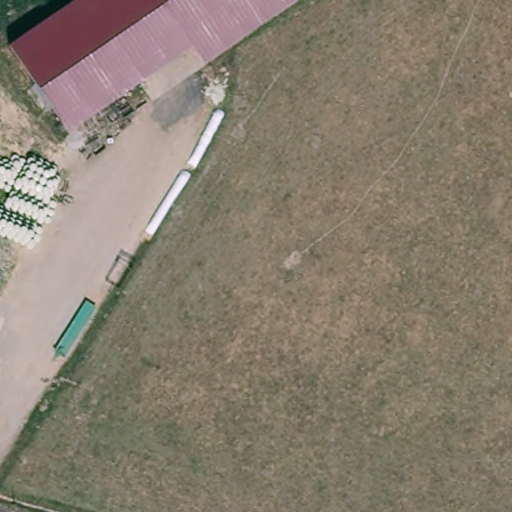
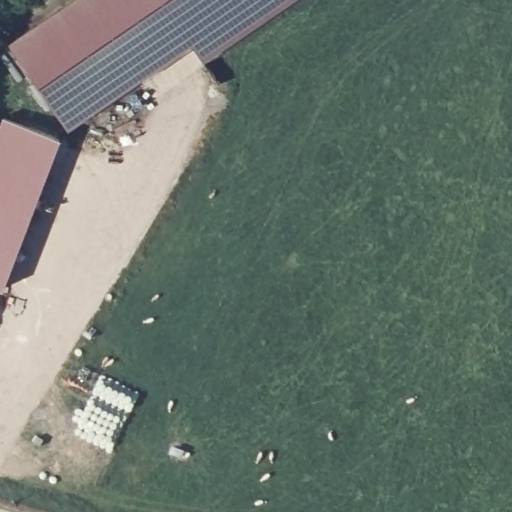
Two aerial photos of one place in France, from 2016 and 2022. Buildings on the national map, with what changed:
unchanged [(71,0),(296,0),(204,64),(192,45),(66,131),(9,42),(71,0)]
new [(3,117),(58,139),(2,289),(0,288),(0,125),(3,117)]

